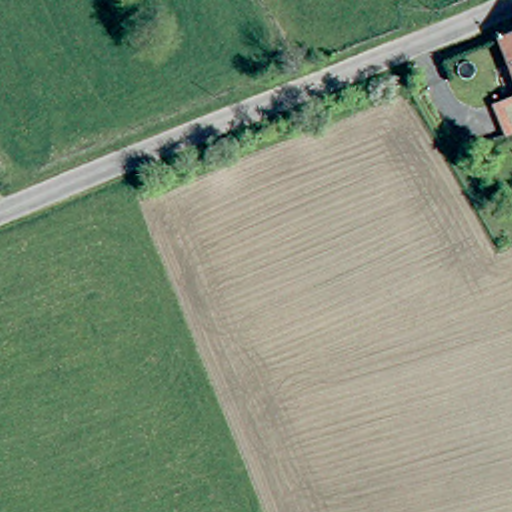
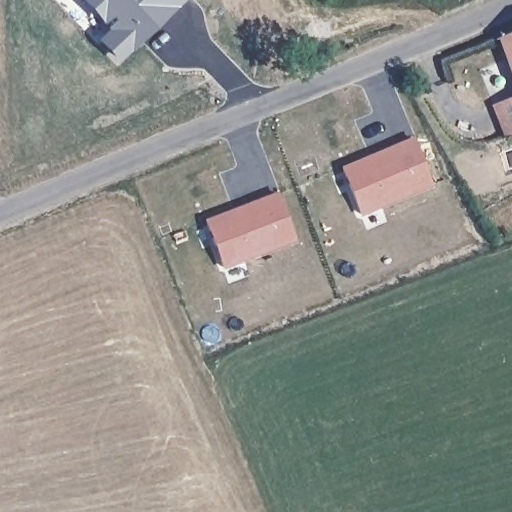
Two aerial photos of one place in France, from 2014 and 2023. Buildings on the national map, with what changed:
new [(113,32),(84,0),(178,0),(119,60),(103,43),(113,32)]
unchanged [(501,42),(512,37),(512,70),(501,42)]
unchanged [(511,141),(499,112),(512,106),(512,140),(511,141)]
new [(413,137),(434,187),(360,216),(341,167),(413,137)]
new [(276,192),(296,241),(223,270),(204,221),(276,192)]

